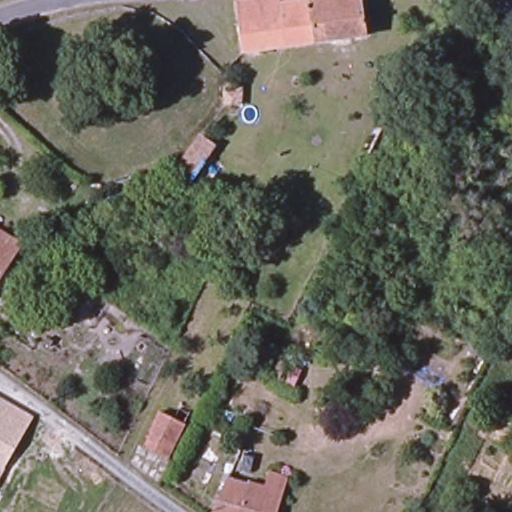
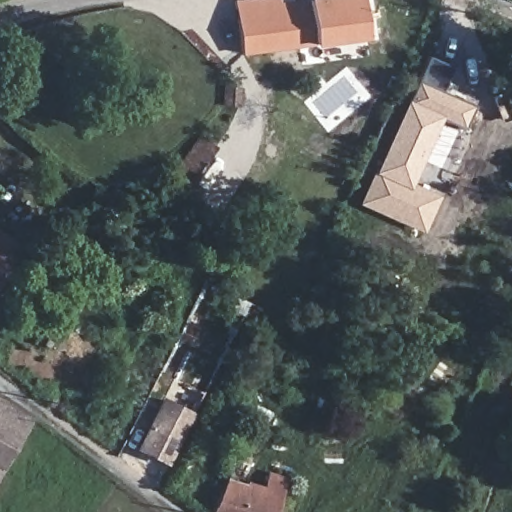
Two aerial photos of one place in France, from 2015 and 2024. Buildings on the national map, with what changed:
unchanged [(244,60),(235,7),(283,2),(283,7),(340,0),(366,0),(371,41),(244,60)]
demolished [(453,71),(431,61),(448,25),(469,35),(453,71)]
new [(358,205),(372,173),(374,174),(428,57),(451,67),(440,92),(474,105),(465,129),(442,118),(413,184),(439,196),(423,233),(358,205)]
unchanged [(221,112),(222,92),(239,93),(239,113),(221,112)]
demolished [(423,202),(377,181),(412,100),(459,122),(423,202)]
unchanged [(172,182),(168,179),(169,177),(176,165),(182,155),(191,160),(200,147),(202,144),(217,152),(197,184),(189,195),(172,182)]
unchanged [(219,149),(263,175),(240,217),(197,184),(217,152),(219,149)]
unchanged [(136,179),(158,170),(165,189),(141,199),(136,179)]
unchanged [(19,254),(0,282),(0,237),(19,249),(24,241),(38,235),(43,240),(30,261),(19,254)]
unchanged [(25,340),(6,327),(20,306),(40,320),(25,340)]
unchanged [(512,398),(512,417),(506,415),(512,398)]
unchanged [(0,483),(0,406),(35,428),(0,483)]
unchanged [(185,424),(162,470),(139,459),(157,422),(170,429),(176,419),(185,424)]
unchanged [(263,493),(267,478),(285,484),(277,512),(215,512),(229,484),(263,493)]

